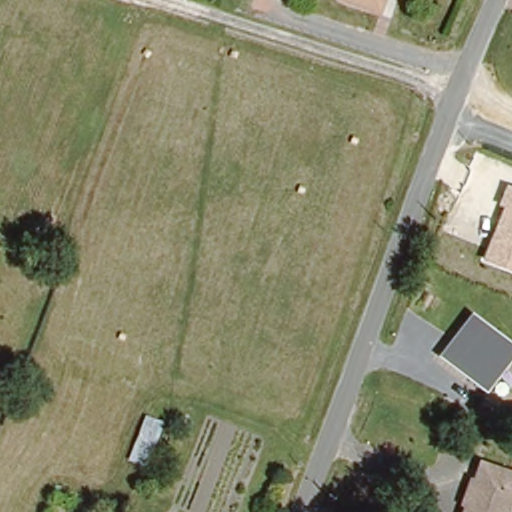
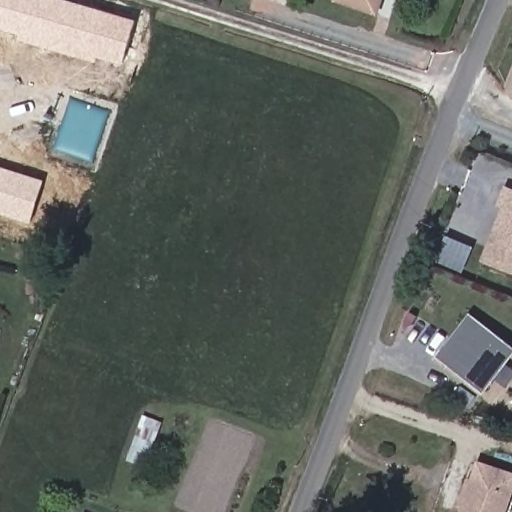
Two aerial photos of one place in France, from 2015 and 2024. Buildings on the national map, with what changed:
new [(99,56),(98,62),(20,39),(21,33),(0,28),(0,8),(2,0),(70,0),(136,19),(123,63),(99,56)]
unchanged [(374,7),(352,0),(376,0),(374,7)]
new [(511,91),(505,88),(512,70),(512,98),(509,97),(511,91)]
new [(0,213),(0,166),(44,180),(31,222),(0,213)]
unchanged [(483,260),(503,206),(498,204),(506,186),(512,189),(512,272),(483,260)]
new [(447,235),(473,247),(462,272),(436,260),(447,235)]
unchanged [(512,345),(512,357),(484,392),(438,356),(471,314),(512,345)]
unchanged [(165,414),(145,461),(111,453),(133,403),(165,414)]
unchanged [(509,466),(512,457),(512,480),(501,512),(462,512),(481,456),(509,466)]

